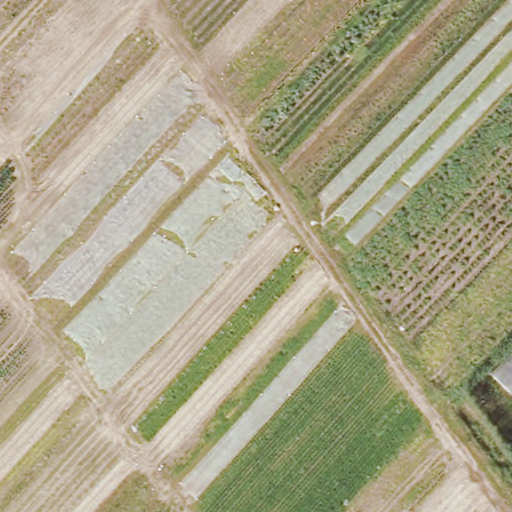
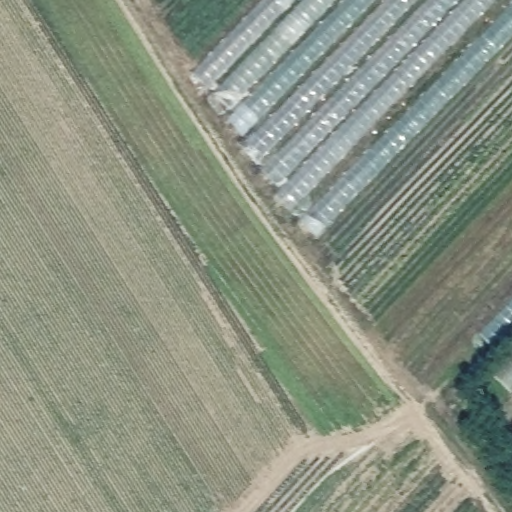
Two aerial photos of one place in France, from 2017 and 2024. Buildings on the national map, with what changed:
new [(273,198),(281,191),(238,149),(246,141),(224,121),(231,115),(192,73),(263,0),(512,0),(512,39),(318,240),(273,198)]
unchanged [(512,354),(512,396),(491,375),(512,354)]

